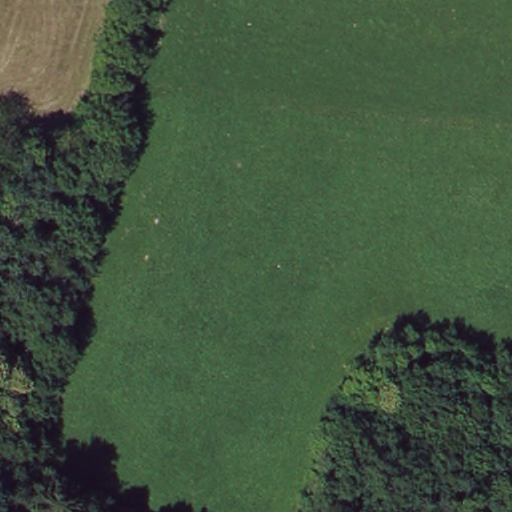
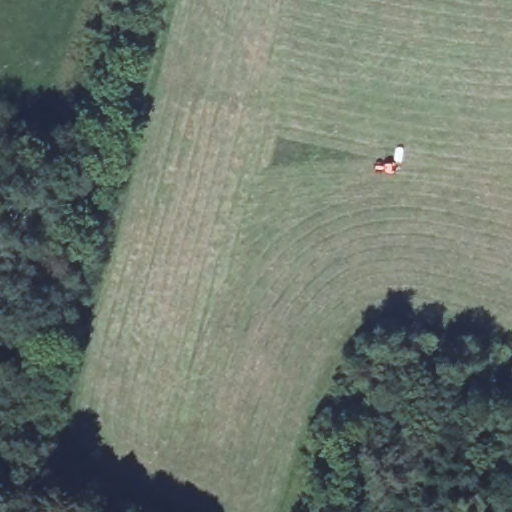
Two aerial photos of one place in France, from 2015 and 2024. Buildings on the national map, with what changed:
[]

